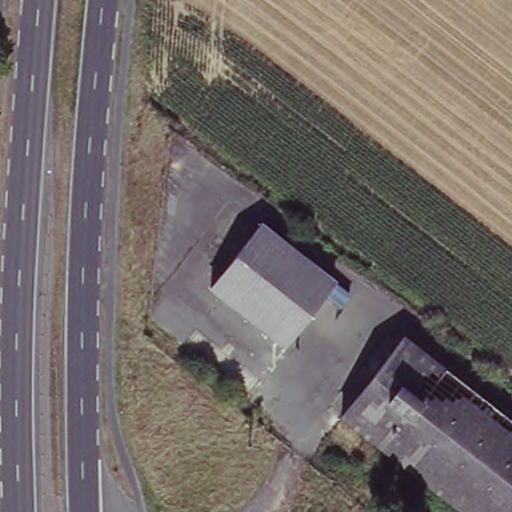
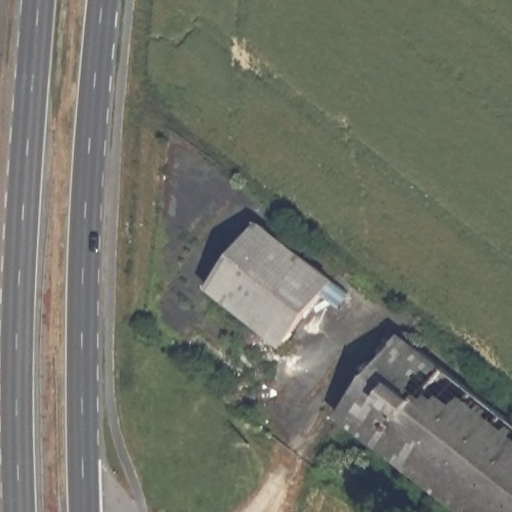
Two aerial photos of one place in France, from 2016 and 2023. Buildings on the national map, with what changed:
unchanged [(335,286),(287,346),(215,291),(262,230),(335,286)]
unchanged [(512,512),(469,512),(345,418),(339,413),(401,334),(407,338),(512,419),(512,512)]

